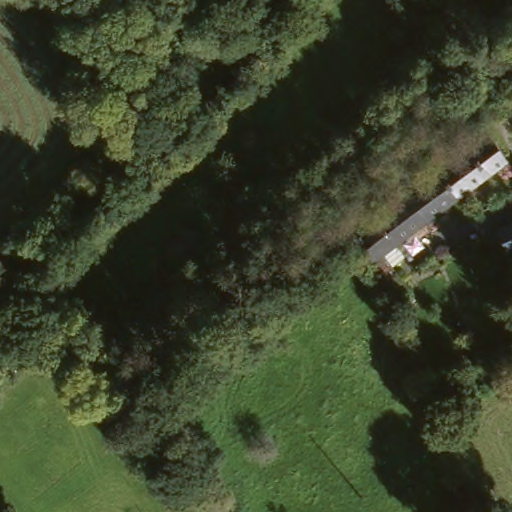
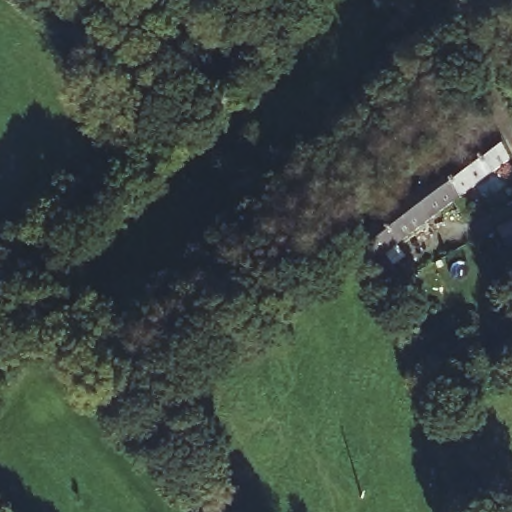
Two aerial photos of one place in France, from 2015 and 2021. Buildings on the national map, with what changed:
unchanged [(440,176),(486,144),(491,140),(508,166),(458,201),(440,176)]
unchanged [(405,200),(440,176),(458,201),(423,225),(405,200)]
unchanged [(389,250),(406,279),(391,288),(356,235),(374,222),(405,200),(423,225),(389,250)]
unchanged [(497,225),(512,217),(512,244),(505,246),(497,225)]

